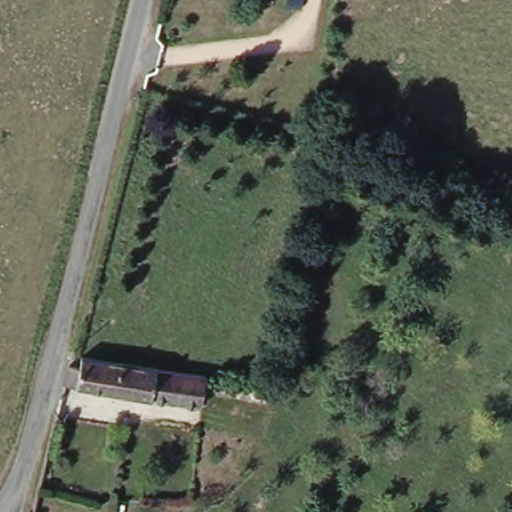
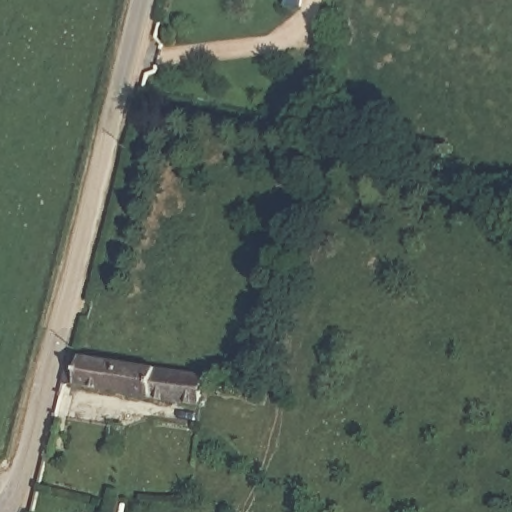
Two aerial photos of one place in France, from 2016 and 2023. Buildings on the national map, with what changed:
unchanged [(306,3),(292,0),(306,0),(306,3)]
unchanged [(84,374),(87,360),(164,373),(162,376),(210,382),(205,411),(69,391),(73,371),(84,374)]

